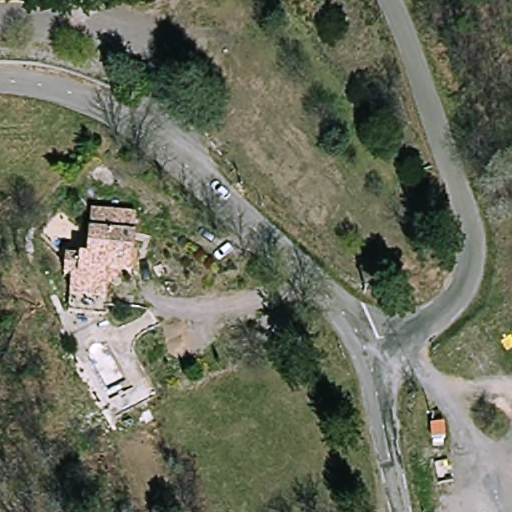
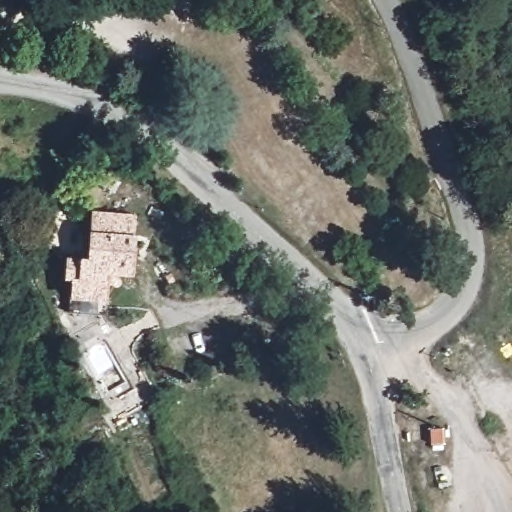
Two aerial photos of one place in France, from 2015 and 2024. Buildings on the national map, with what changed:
unchanged [(89,303),(58,290),(55,283),(63,262),(59,261),(64,250),(86,260),(108,214),(146,230),(122,286),(99,278),(89,303)]

